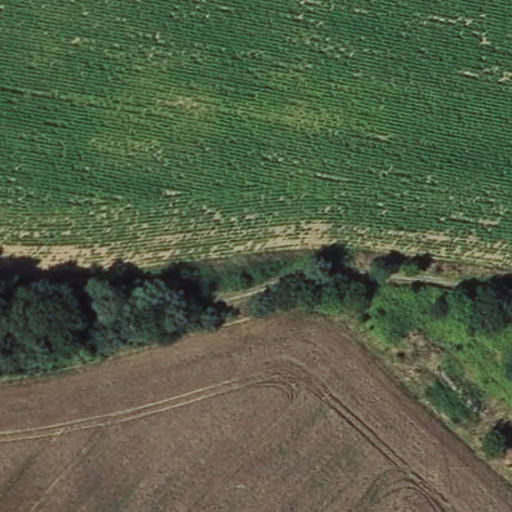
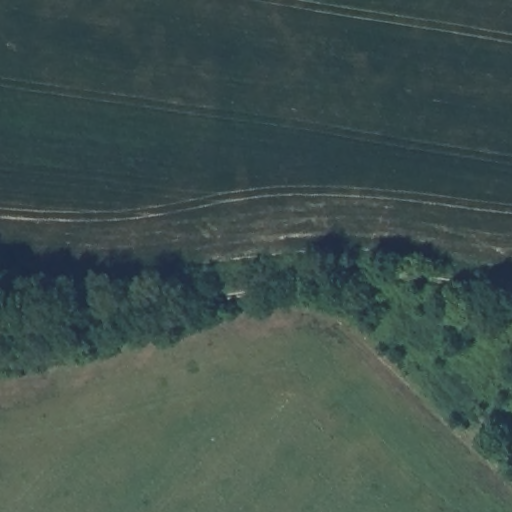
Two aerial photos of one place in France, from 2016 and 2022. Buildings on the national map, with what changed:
[]

